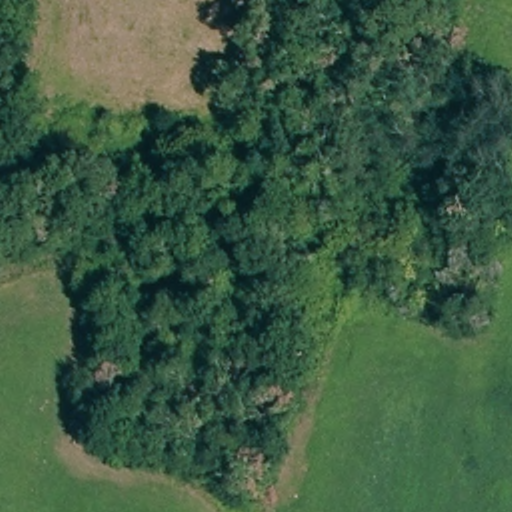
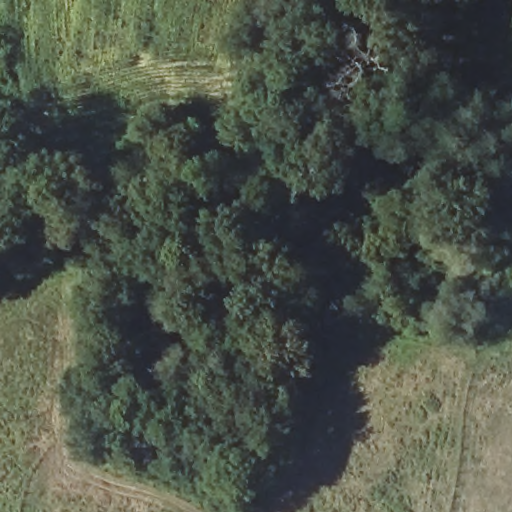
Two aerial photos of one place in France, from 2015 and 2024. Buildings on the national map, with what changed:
[]

